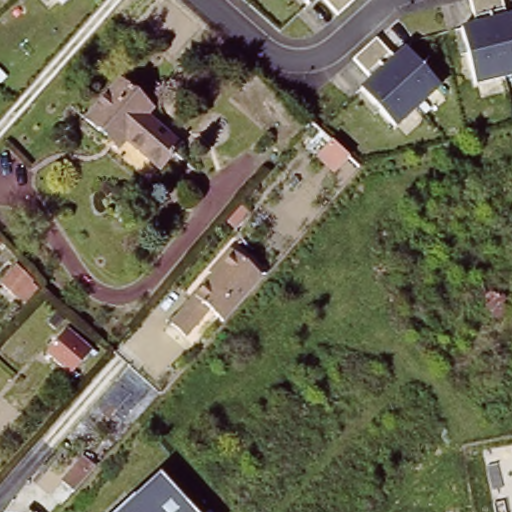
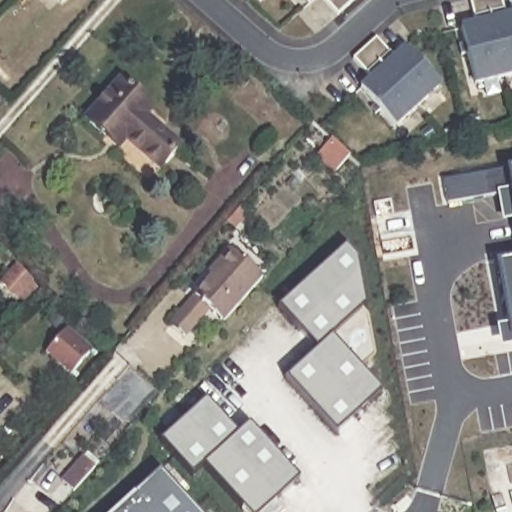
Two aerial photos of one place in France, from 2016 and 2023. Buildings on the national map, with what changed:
unchanged [(58,8),(50,0),(66,0),(58,8)]
unchanged [(304,5),(298,0),(310,0),(304,5)]
unchanged [(333,15),(319,0),(339,0),(344,5),(333,15)]
unchanged [(339,0),(351,0),(344,5),(339,0)]
unchanged [(501,82),(471,90),(457,34),(472,30),(464,3),(477,0),(480,0),(501,82)]
unchanged [(502,22),(512,20),(512,79),(501,82),(480,0),(496,0),(502,22)]
unchanged [(359,49),(371,39),(389,59),(401,49),(435,86),(413,106),(359,49)]
unchanged [(413,106),(390,127),(356,90),(366,80),(348,59),(359,49),(413,106)]
unchanged [(156,113),(149,121),(183,151),(164,174),(117,134),(109,143),(89,126),(124,85),(156,113)]
new [(512,170),(512,199),(511,194),(449,205),(444,182),(512,170)]
new [(348,247),(359,260),(368,307),(363,311),(369,317),(376,357),(361,370),(383,394),(336,436),(286,380),(317,351),(279,309),(348,247)]
unchanged [(185,332),(173,322),(220,269),(217,266),(232,250),(264,278),(226,322),(208,307),(185,332)]
new [(509,340),(495,264),(512,261),(512,339),(509,340)]
unchanged [(0,279),(14,263),(36,289),(18,305),(0,287),(0,279)]
demolished [(481,280),(512,308),(512,309),(496,325),(468,296),(481,280)]
new [(68,328),(92,350),(89,353),(70,375),(46,353),(65,332),(68,328)]
new [(238,435),(249,425),(301,481),(275,505),(282,512),(242,512),(201,468),(191,477),(160,443),(206,400),(238,435)]
unchanged [(80,463),(91,472),(71,495),(60,486),(80,463)]
unchanged [(196,512),(116,512),(159,473),(196,512)]

